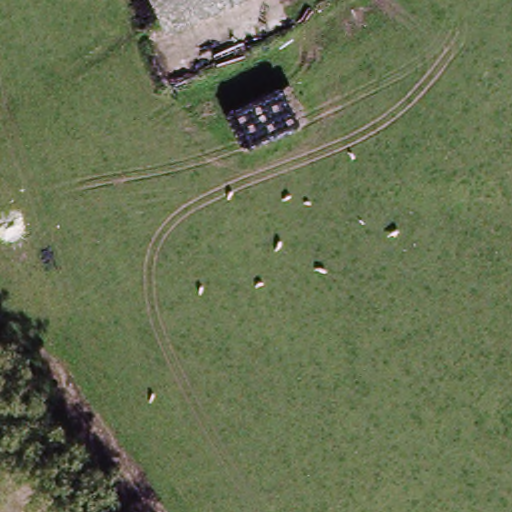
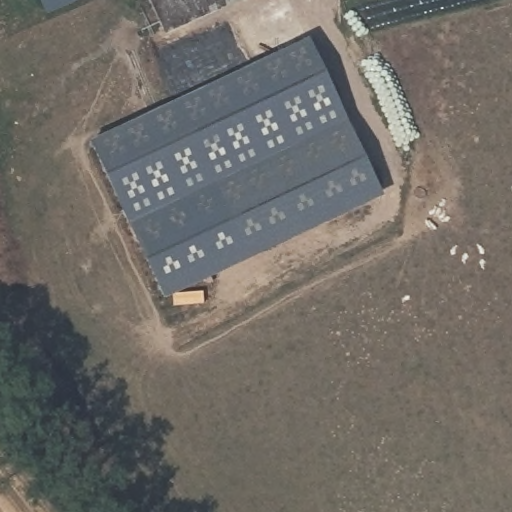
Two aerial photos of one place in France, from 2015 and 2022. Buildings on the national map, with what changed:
unchanged [(43,0),(38,1),(38,0),(43,0)]
unchanged [(217,0),(158,26),(147,0),(217,0)]
new [(210,191),(232,241),(375,178),(383,199),(165,301),(89,145),(308,40),(352,127),(210,191)]
new [(352,127),(375,178),(232,241),(210,191),(352,127)]

